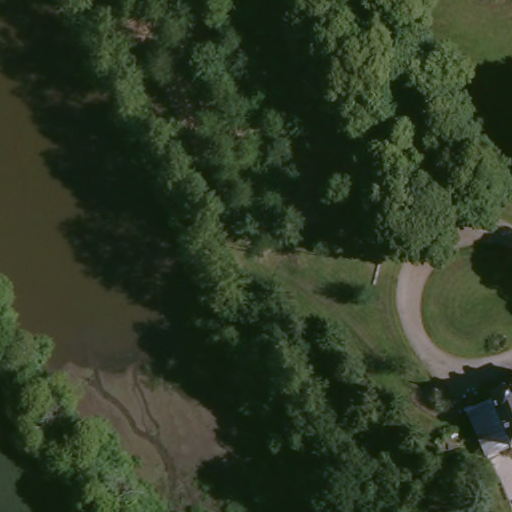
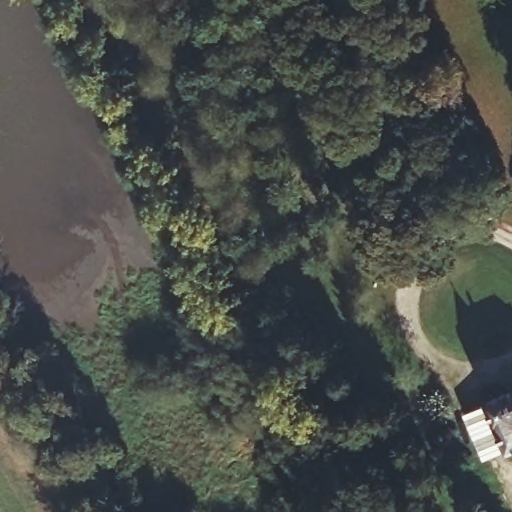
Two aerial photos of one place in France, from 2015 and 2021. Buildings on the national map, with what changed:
unchanged [(512,399),(512,455),(505,459),(485,412),(512,399)]
unchanged [(505,459),(497,462),(483,469),(463,422),(469,418),(476,415),(485,412),(505,459)]

